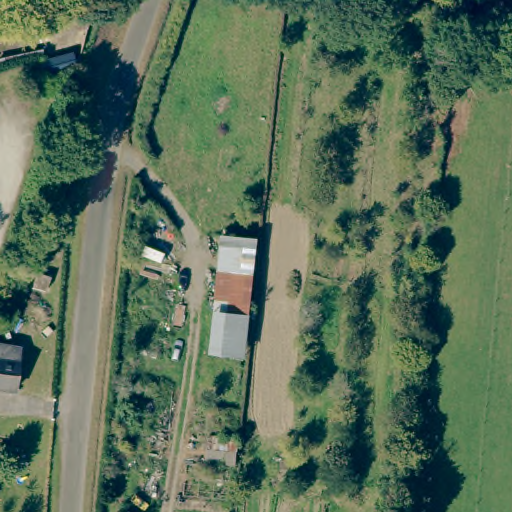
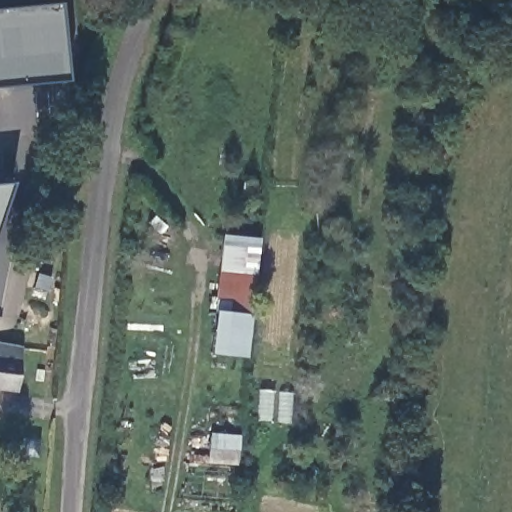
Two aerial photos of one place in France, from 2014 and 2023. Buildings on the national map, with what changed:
new [(0,88),(0,9),(57,3),(65,82),(0,88)]
new [(0,214),(0,184),(11,182),(0,214)]
unchanged [(259,237),(248,355),(212,352),(224,234),(259,237)]
unchanged [(48,283),(43,298),(29,293),(33,278),(48,283)]
unchanged [(15,355),(12,397),(0,396),(0,352),(15,355)]
unchanged [(238,466),(208,463),(210,435),(241,437),(238,466)]
unchanged [(382,512),(383,495),(396,496),(395,512),(382,512)]

